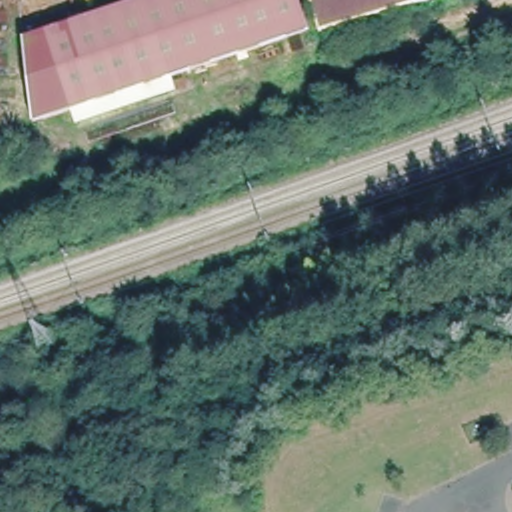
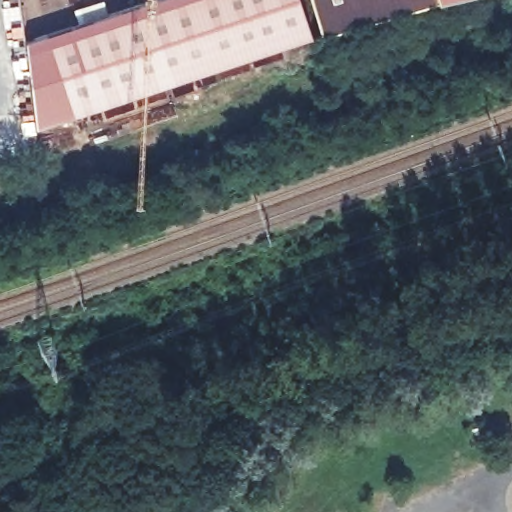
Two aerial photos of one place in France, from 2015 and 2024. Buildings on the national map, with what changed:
unchanged [(24,27),(121,0),(300,0),(309,34),(32,112),(24,27)]
unchanged [(308,0),(443,0),(318,36),(308,0)]

